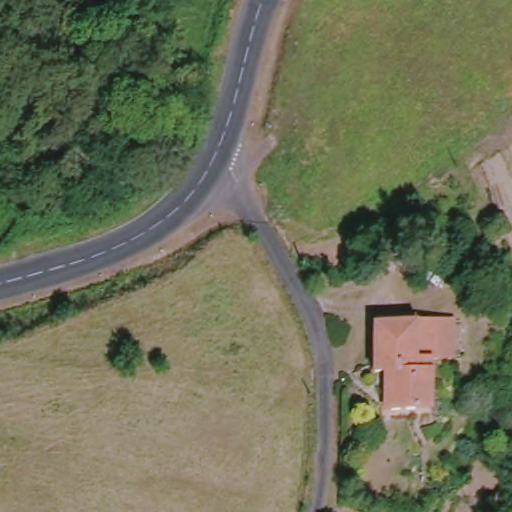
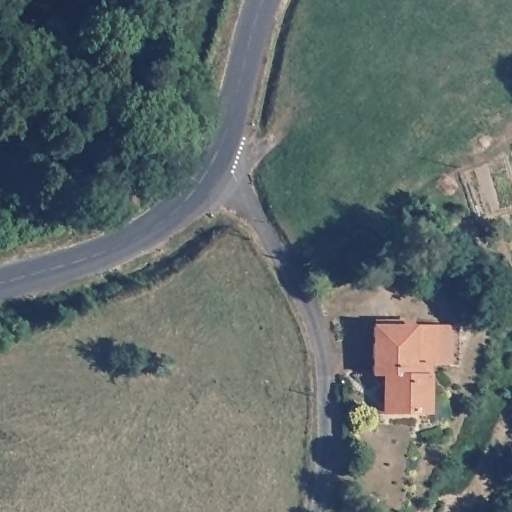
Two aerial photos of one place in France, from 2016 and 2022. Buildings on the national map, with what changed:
unchanged [(391,414),(383,414),(384,374),(375,374),(377,327),(417,329),(440,330),(438,368),(432,367),(430,398),(430,417),(412,416),(391,414)]

